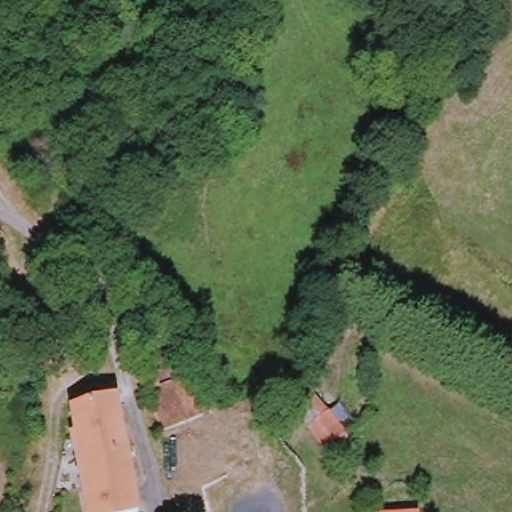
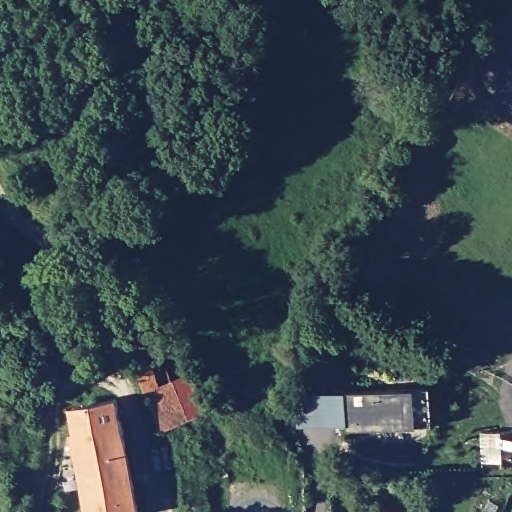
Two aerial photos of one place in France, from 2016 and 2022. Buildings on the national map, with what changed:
unchanged [(145,376),(158,371),(158,372),(165,387),(187,380),(188,380),(197,402),(199,404),(204,419),(159,439),(137,378),(145,376)]
new [(434,425),(417,427),(347,430),(346,425),(297,427),(297,395),(415,388),(432,387),(434,425)]
unchanged [(68,416),(82,407),(115,403),(138,512),(88,512),(70,441),(75,438),(67,417),(68,416)]
demolished [(315,420),(332,408),(356,447),(337,460),(315,420)]

